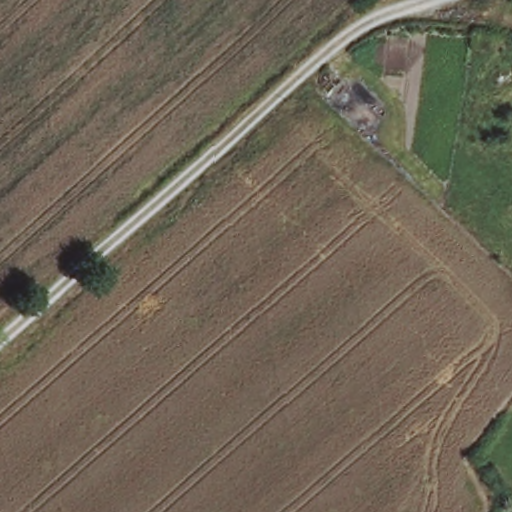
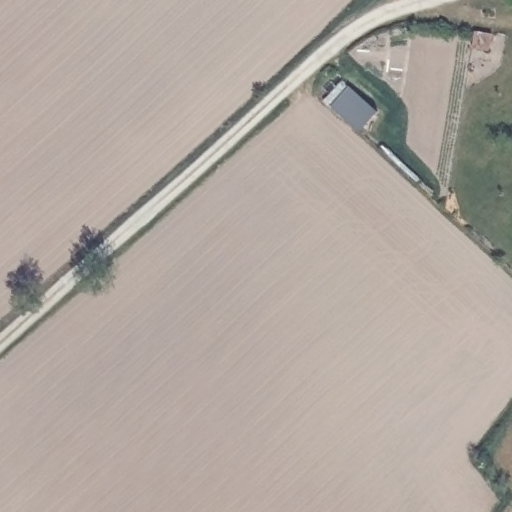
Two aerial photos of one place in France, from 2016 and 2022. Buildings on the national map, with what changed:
demolished [(383,112),(367,135),(323,100),(342,79),(383,112)]

